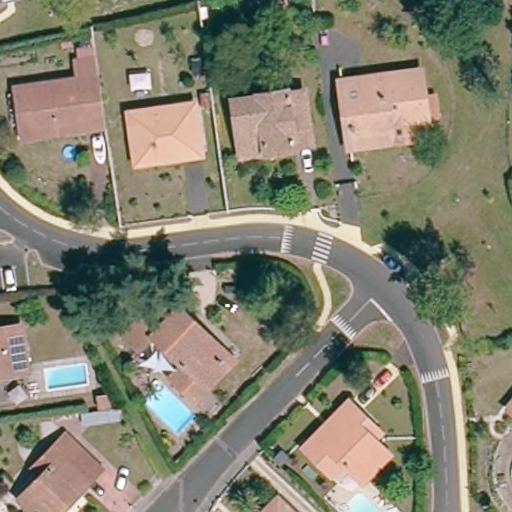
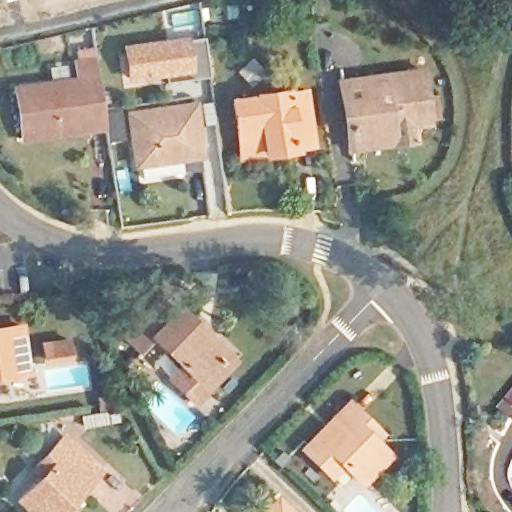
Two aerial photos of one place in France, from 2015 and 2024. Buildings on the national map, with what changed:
new [(204,37),(210,76),(133,87),(130,66),(125,67),(122,44),(189,35),(190,39),(204,37)]
unchanged [(383,151),(345,156),(341,129),(334,91),(407,83),(414,130),(403,133),(404,148),(383,151)]
unchanged [(98,119),(19,131),(13,95),(93,84),(98,119)]
unchanged [(251,146),(246,99),(296,92),(297,97),(314,94),(320,145),(301,147),(301,155),(277,158),(253,160),(251,146)]
unchanged [(184,166),(138,172),(130,116),(194,109),(199,146),(201,164),(184,166)]
unchanged [(21,145),(19,131),(98,119),(100,134),(21,145)]
unchanged [(205,397),(195,407),(122,340),(153,307),(170,321),(176,314),(222,358),(233,368),(205,397)]
unchanged [(29,378),(0,384),(0,333),(21,330),(29,378)]
unchanged [(512,396),(512,415),(503,407),(512,396)]
unchanged [(102,403),(114,401),(116,415),(104,417),(102,403)]
unchanged [(351,490),(336,477),(326,487),(295,453),(340,412),(356,426),(372,443),(360,456),(373,469),(351,490)]
unchanged [(20,512),(17,508),(39,485),(31,477),(69,440),(78,450),(103,477),(66,512),(20,512)]
unchanged [(276,512),(266,512),(272,507),(276,512)]

